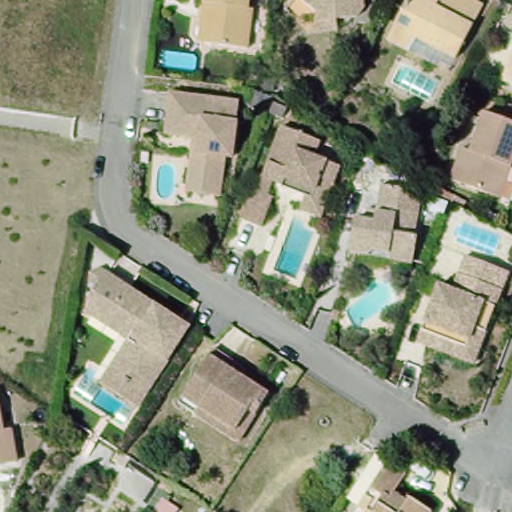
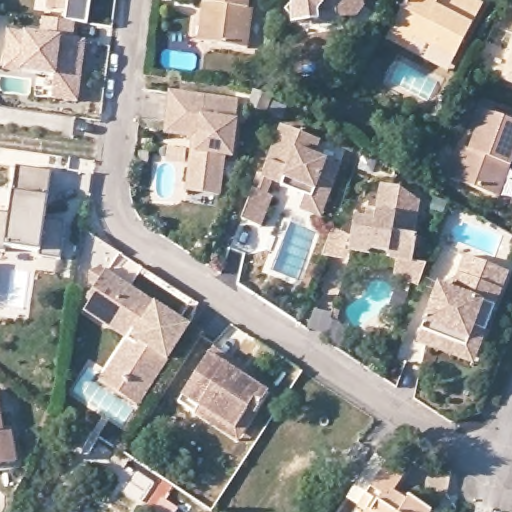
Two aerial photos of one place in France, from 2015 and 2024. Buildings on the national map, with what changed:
new [(73,20),(66,20),(67,0),(87,0),(86,21),(73,20)]
unchanged [(204,0),(248,0),(248,7),(253,9),(248,47),(206,41),(198,40),(204,3),(204,0)]
unchanged [(318,25),(316,16),(296,0),(364,0),(365,10),(357,22),(318,25)]
unchanged [(397,25),(409,0),(474,0),(484,5),(455,58),(420,38),(412,51),(390,39),(397,25)]
new [(27,33),(43,35),(45,19),(66,20),(73,20),(72,40),(84,41),(77,100),(53,98),(53,73),(23,69),(5,69),(9,31),(27,33)]
unchanged [(499,85),(512,49),(512,90),(499,85)]
unchanged [(187,192),(188,180),(193,139),(166,135),(171,94),(240,103),(232,157),(225,156),(220,185),(218,197),(187,192)]
unchanged [(493,199),(452,184),(464,151),(470,155),(485,116),(512,126),(512,168),(511,171),(499,201),(493,199)]
unchanged [(302,207),(307,195),(283,185),(282,184),(274,181),(269,194),(273,196),(262,225),(243,219),(260,176),(262,176),(283,126),(321,140),(315,155),(342,165),(328,203),(323,215),(302,207)]
new [(17,167),(46,171),(39,219),(60,222),(55,260),(33,257),(34,252),(0,247),(0,214),(10,215),(17,167)]
unchanged [(350,251),(355,216),(375,220),(382,185),(401,188),(420,200),(413,234),(416,235),(412,263),(390,259),(368,255),(350,251)]
unchanged [(467,350),(424,330),(441,286),(453,291),(467,259),(509,275),(501,293),(495,307),(485,334),(475,331),(467,350)]
unchanged [(139,342),(132,337),(136,332),(91,302),(86,300),(95,287),(90,283),(91,271),(99,267),(189,326),(145,392),(118,375),(139,342)]
unchanged [(107,368),(127,338),(85,311),(91,302),(136,332),(132,337),(139,342),(118,375),(107,368)]
unchanged [(473,365),(418,345),(424,330),(467,350),(475,331),(485,334),(473,365)]
unchanged [(193,410),(177,398),(209,349),(214,342),(246,363),(242,370),(269,386),(261,398),(237,436),(193,410)]
unchanged [(10,427),(16,460),(0,463),(0,415),(3,428),(10,427)]
unchanged [(393,496),(409,506),(410,502),(425,512),(367,512),(372,505),(365,500),(387,465),(405,477),(393,496)]

